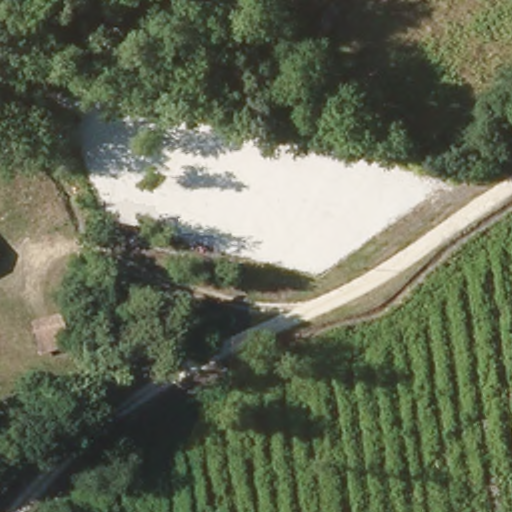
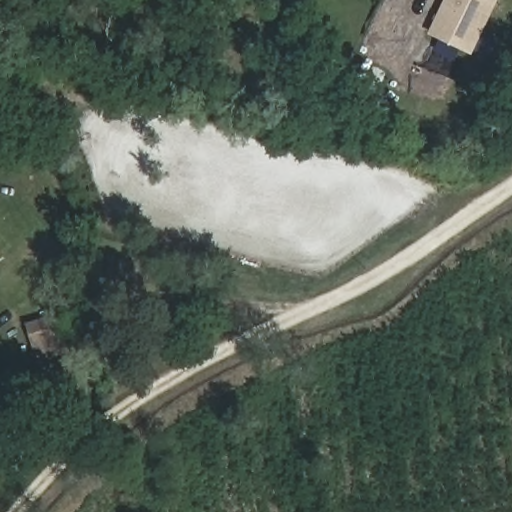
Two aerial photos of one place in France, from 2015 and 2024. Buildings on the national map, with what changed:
new [(474,55),(430,35),(446,0),(499,0),(501,1),(474,55)]
unchanged [(0,250),(3,253),(0,255),(0,250)]
new [(64,343),(36,352),(29,324),(56,316),(64,343)]

